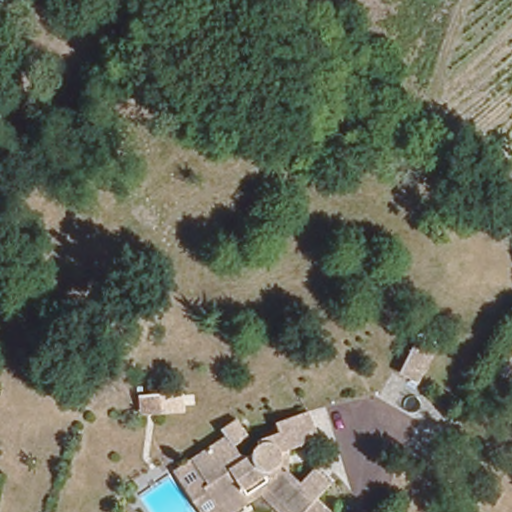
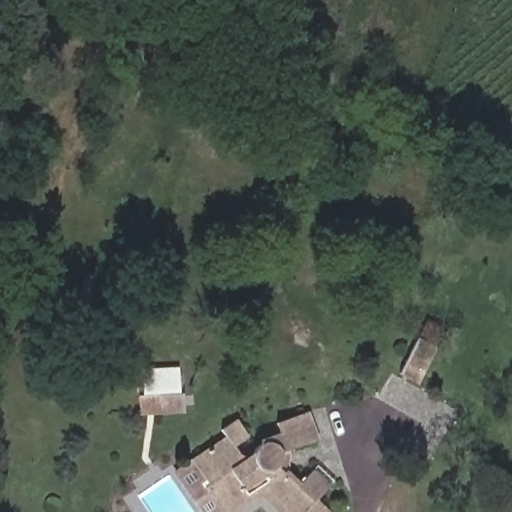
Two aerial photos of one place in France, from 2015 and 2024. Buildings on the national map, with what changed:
unchanged [(417,340),(438,350),(421,383),(401,374),(417,340)]
unchanged [(160,380),(163,403),(143,406),(140,383),(160,380)]
unchanged [(273,422),(272,414),(302,406),(313,441),(289,447),(285,464),(295,476),(309,470),(331,489),(321,504),(329,512),(287,512),(267,495),(238,512),(219,512),(194,485),(203,479),(189,462),(222,435),(215,425),(235,417),(246,430),(273,422)]

